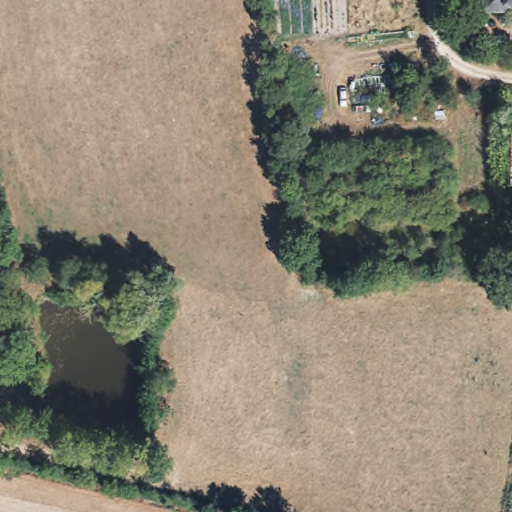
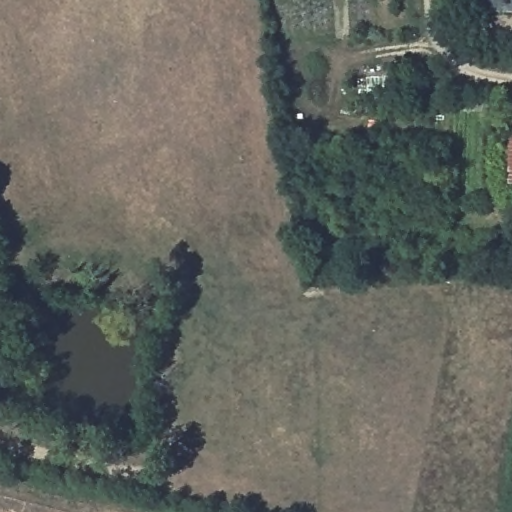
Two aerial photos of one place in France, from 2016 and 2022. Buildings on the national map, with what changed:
unchanged [(483,0),(512,0),(512,14),(483,14),(483,0)]

